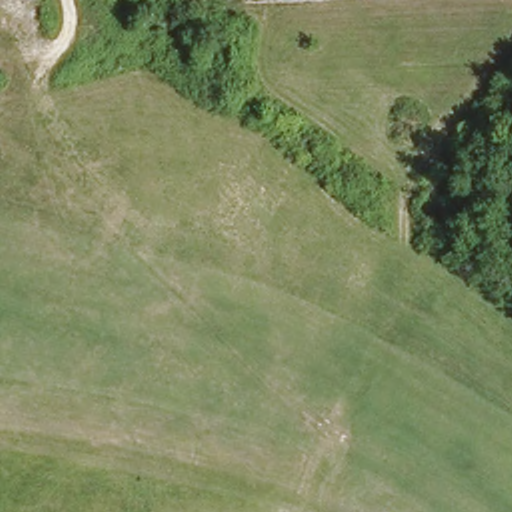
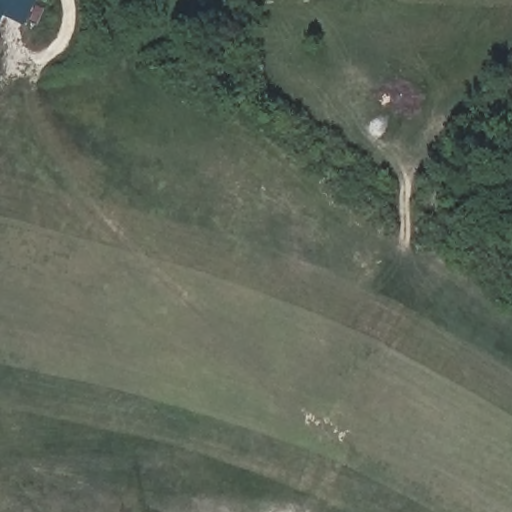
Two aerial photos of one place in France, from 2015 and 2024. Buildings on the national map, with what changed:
new [(0,0),(40,0),(27,27),(6,19),(0,30),(0,0)]

